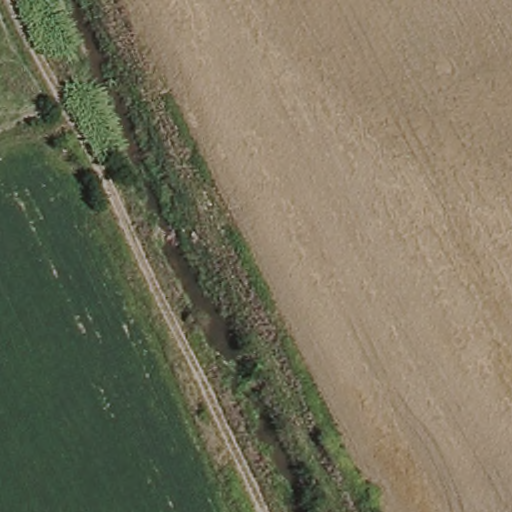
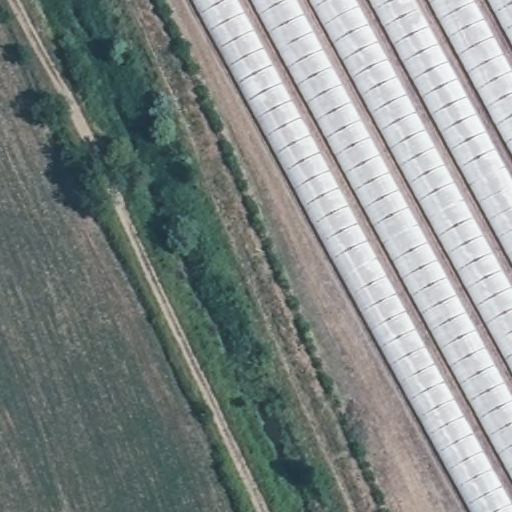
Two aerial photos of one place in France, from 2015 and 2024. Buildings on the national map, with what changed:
new [(193,0),(512,0),(512,512),(469,512),(193,0)]

